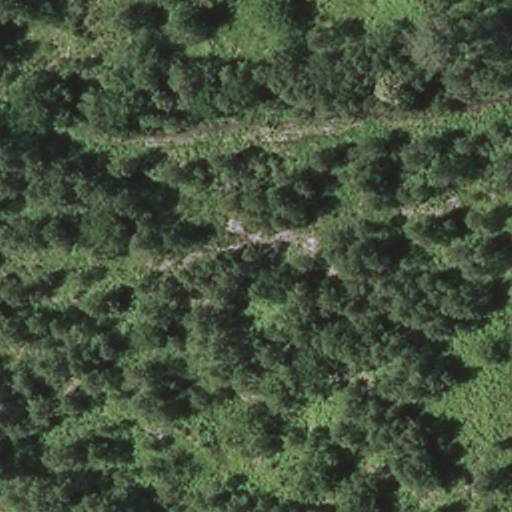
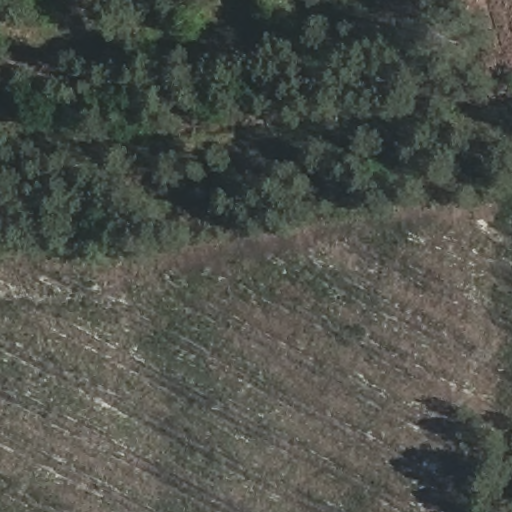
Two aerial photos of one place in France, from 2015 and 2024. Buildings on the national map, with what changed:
[]

